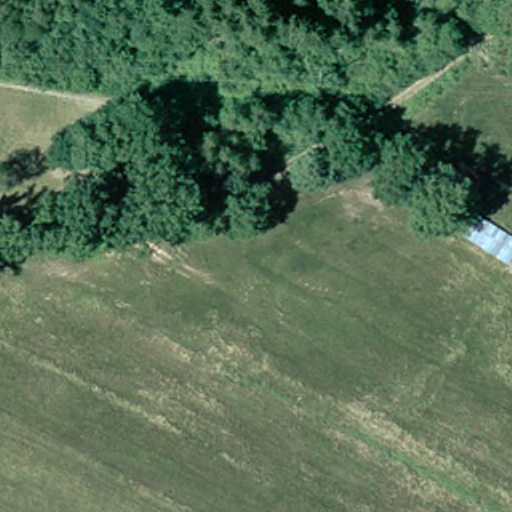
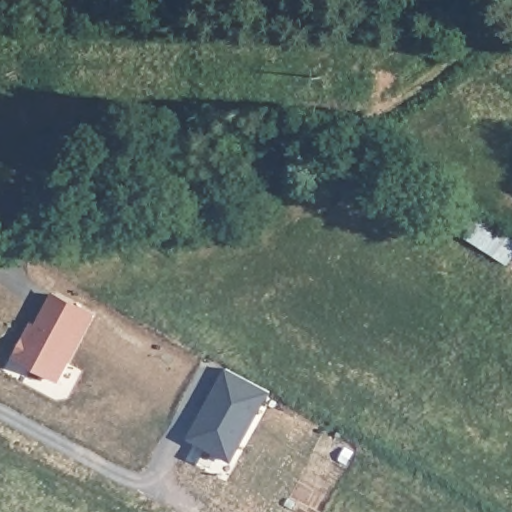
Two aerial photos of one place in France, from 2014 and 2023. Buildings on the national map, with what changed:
new [(33,327),(37,329),(54,297),(91,317),(56,382),(19,363),(17,357),(25,342),(33,327)]
new [(229,371),(271,394),(234,463),(192,441),(202,422),(206,416),(229,371)]

